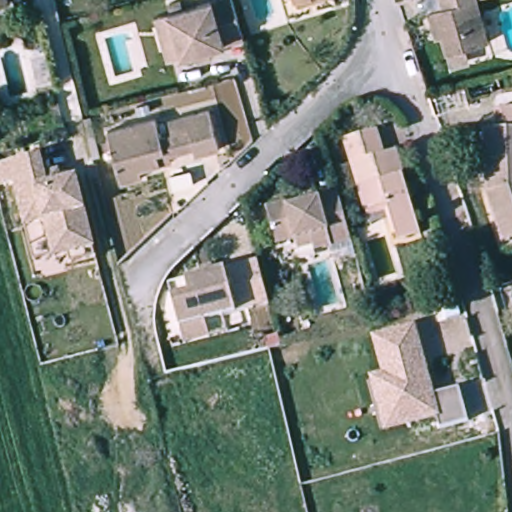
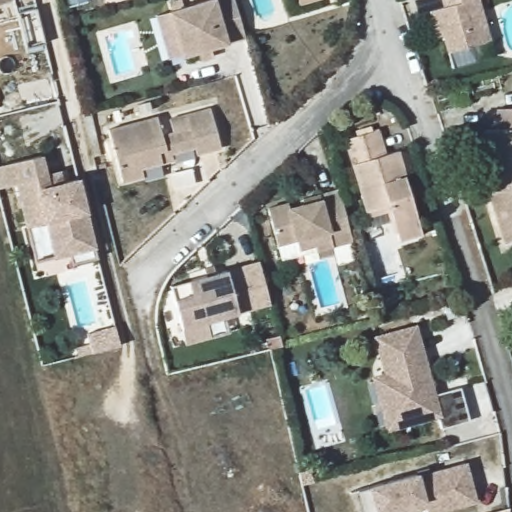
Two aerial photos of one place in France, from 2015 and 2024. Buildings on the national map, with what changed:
unchanged [(0,0),(10,0),(10,1),(0,4),(0,0)]
unchanged [(170,12),(213,0),(235,0),(241,24),(245,38),(182,56),(170,60),(157,16),(170,12)]
unchanged [(303,0),(319,0),(304,5),(303,0)]
unchanged [(440,15),(449,12),(445,0),(482,0),(495,46),(453,58),(448,41),(442,42),(435,17),(440,15)]
unchanged [(167,165),(147,170),(148,177),(127,183),(113,130),(162,117),(166,135),(178,132),(175,120),(215,109),(225,149),(200,156),(198,148),(177,154),(179,161),(167,165)]
unchanged [(508,249),(493,202),(492,199),(490,136),(501,136),(502,115),(512,114),(512,247),(508,249)]
unchanged [(373,217),(351,145),(382,136),(389,161),(402,157),(427,240),(405,246),(395,216),(375,222),(373,217)]
unchanged [(62,168),(65,178),(77,175),(95,249),(53,258),(46,226),(23,230),(13,186),(0,188),(0,166),(42,156),(47,172),(62,168)]
unchanged [(297,241),(277,246),(267,209),(287,204),(289,209),(304,205),(302,199),(320,195),(340,190),(353,242),(316,252),(315,247),(300,251),(297,241)]
unchanged [(30,260),(21,262),(17,249),(25,246),(30,260)]
unchanged [(259,262),(269,300),(270,305),(251,310),(182,328),(172,291),(170,287),(192,280),(240,267),(259,262)]
unchanged [(357,295),(366,292),(375,290),(379,302),(369,304),(360,307),(357,295)]
unchanged [(459,388),(467,423),(441,429),(438,419),(383,432),(370,377),(382,375),(370,334),(415,325),(435,396),(459,388)]
unchanged [(282,347),(271,350),(268,339),(279,336),(282,347)]
new [(422,472),(422,468),(433,465),(435,471),(472,461),(482,499),(433,512),(432,505),(403,512),(388,512),(387,509),(375,512),(369,512),(362,487),(381,482),(422,472)]

